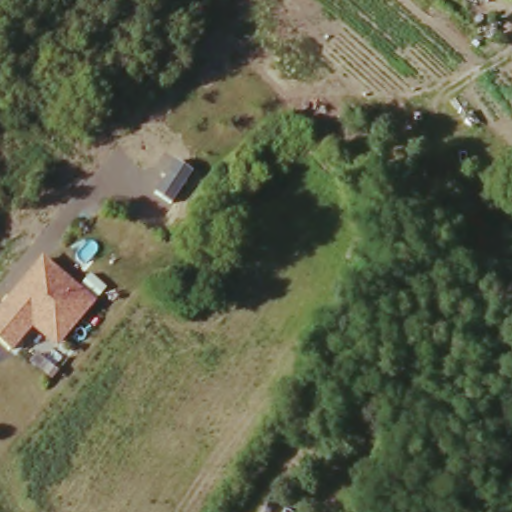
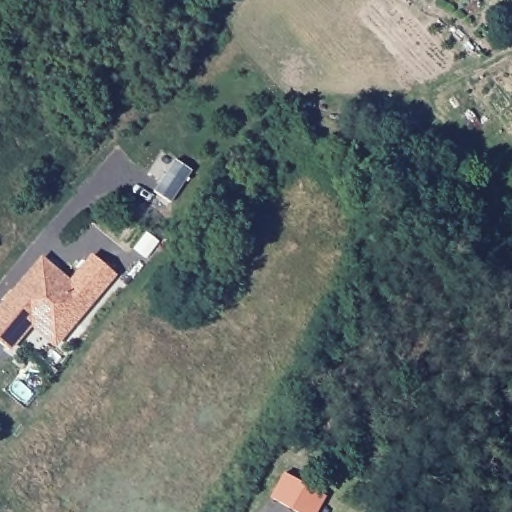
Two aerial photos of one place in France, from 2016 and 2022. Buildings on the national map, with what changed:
unchanged [(8,351),(0,344),(0,309),(41,261),(70,283),(92,260),(120,281),(59,341),(55,346),(30,325),(8,351)]
new [(284,473),(325,497),(317,512),(295,512),(270,498),(284,473)]

